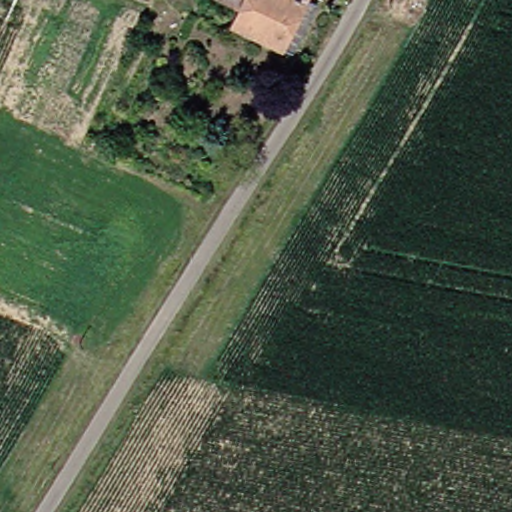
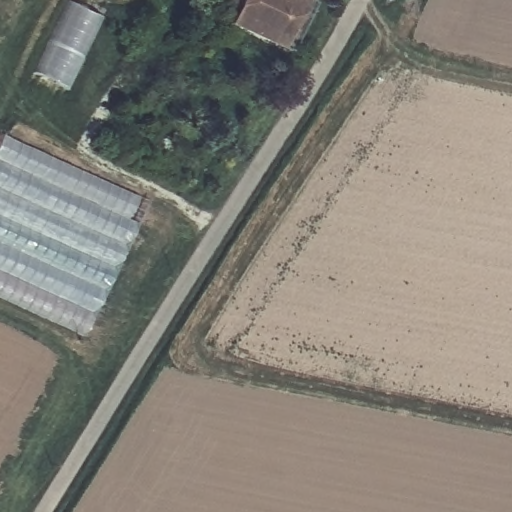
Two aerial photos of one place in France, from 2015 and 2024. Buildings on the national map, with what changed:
new [(66,90),(30,72),(65,0),(100,19),(66,90)]
unchanged [(286,42),(236,20),(241,6),(230,0),(307,0),(286,42)]
new [(81,339),(0,301),(0,140),(2,135),(146,200),(81,339)]

